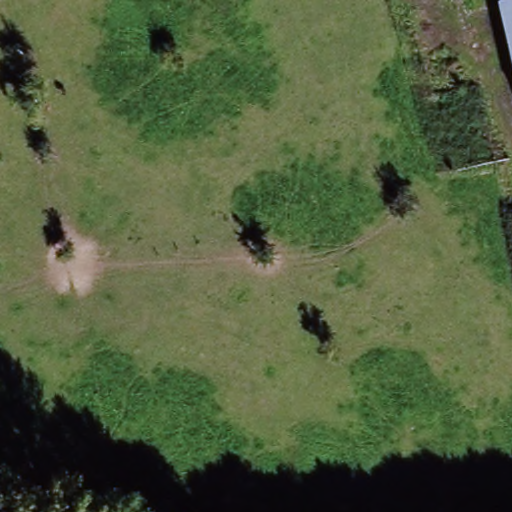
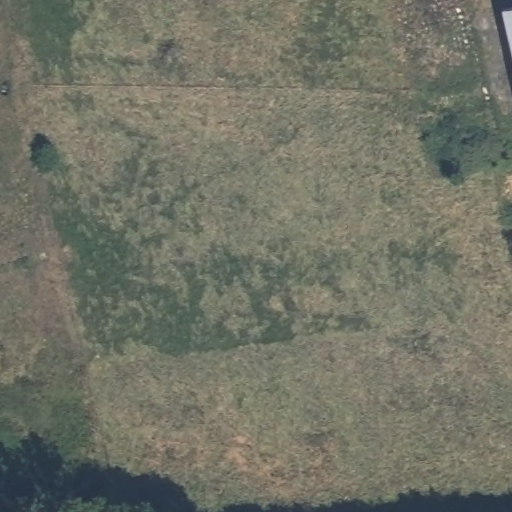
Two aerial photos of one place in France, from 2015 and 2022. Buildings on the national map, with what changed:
unchanged [(494,0),(512,0),(512,72),(494,0)]

